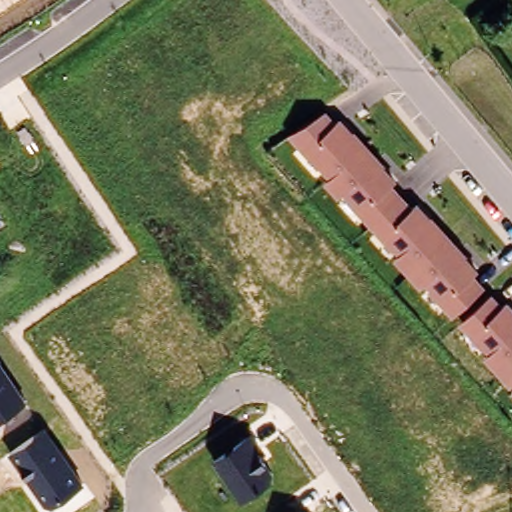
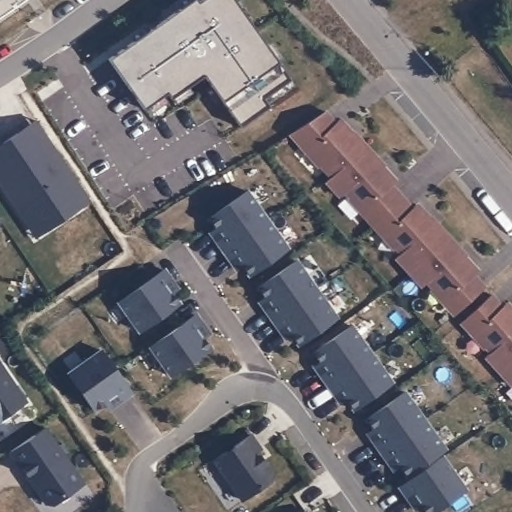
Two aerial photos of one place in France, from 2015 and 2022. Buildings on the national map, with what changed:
new [(0,15),(0,0),(21,0),(0,15)]
new [(191,0),(197,0),(198,1),(200,0),(238,0),(293,78),(266,97),(272,105),(242,126),(205,73),(172,97),(168,91),(145,107),(110,57),(191,0)]
unchanged [(335,121),(340,117),(352,131),(355,129),(398,182),(395,185),(415,205),(420,200),(482,273),(477,278),(487,289),(451,317),(425,285),(419,289),(393,258),(397,254),(345,195),(337,201),(321,178),(327,173),(290,134),(326,111),(335,121)]
new [(36,124),(60,161),(42,173),(17,136),(36,124)]
new [(0,188),(0,148),(17,136),(42,173),(60,161),(89,204),(70,217),(35,240),(27,229),(0,188)]
new [(212,219),(250,192),(271,221),(227,252),(218,240),(213,233),(220,229),(212,219)]
new [(235,264),(227,252),(271,221),(291,249),(252,276),(245,266),(240,270),(235,264)]
new [(261,289),(300,262),(320,290),(275,321),(267,309),(262,303),(268,299),(261,289)]
new [(173,280),(178,287),(172,291),(180,301),(140,330),(120,300),(165,268),(173,280)]
new [(284,334),(275,321),(320,290),(340,319),(302,346),(294,336),(288,340),(284,334)]
unchanged [(504,306),(508,302),(512,307),(512,384),(508,387),(478,351),(482,347),(460,320),(477,308),(492,293),(504,306)]
new [(205,325),(210,332),(204,336),(212,346),(172,374),(151,345),(197,313),(205,325)]
new [(316,354),(355,327),(375,356),(330,387),(322,374),(317,368),(323,364),(316,354)]
new [(105,402),(95,409),(69,372),(102,349),(132,392),(120,400),(110,408),(105,402)]
new [(339,399),(330,387),(375,356),(395,384),(356,411),(349,401),(343,405),(339,399)]
unchanged [(0,418),(0,362),(27,401),(0,418)]
new [(369,421),(407,394),(428,422),(383,453),(375,441),(370,435),(377,431),(369,421)]
new [(392,466),(383,453),(428,422),(448,451),(410,478),(402,468),(397,472),(392,466)]
unchanged [(46,428),(85,483),(54,507),(44,504),(8,453),(46,428)]
unchanged [(250,434),(262,449),(260,452),(272,471),(272,482),(242,501),(213,460),(250,434)]
new [(403,489),(450,456),(472,489),(439,512),(428,512),(425,507),(419,511),(412,501),(403,489)]
unchanged [(306,512),(304,512),(305,511),(306,512)]

